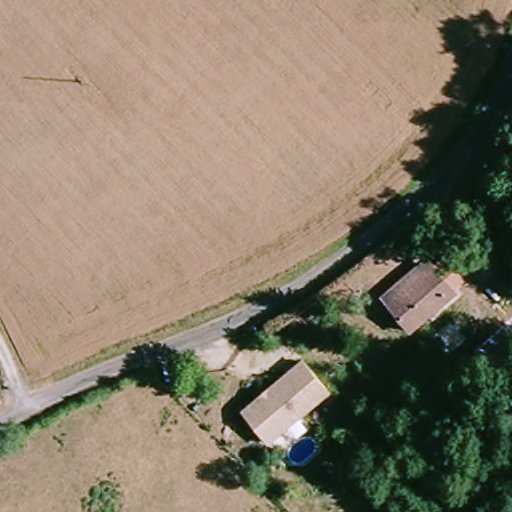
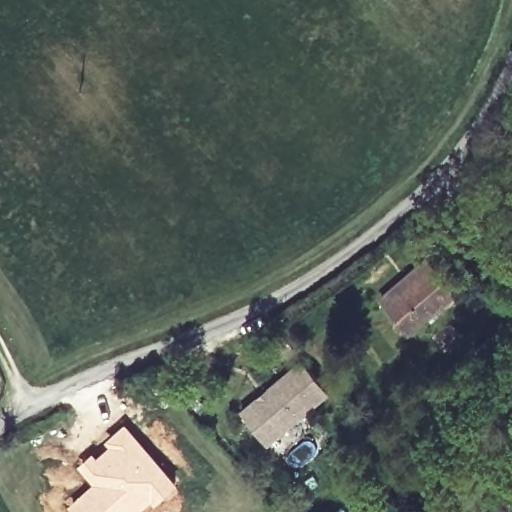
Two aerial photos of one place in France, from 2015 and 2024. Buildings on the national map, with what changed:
unchanged [(401,323),(379,301),(427,255),(447,273),(433,292),(401,323)]
unchanged [(507,311),(512,316),(512,336),(472,370),(457,353),(507,311)]
unchanged [(332,388),(270,442),(241,410),(302,357),(332,388)]
new [(92,482),(77,465),(125,421),(179,481),(165,493),(141,510),(138,512),(77,512),(69,503),(92,482)]

